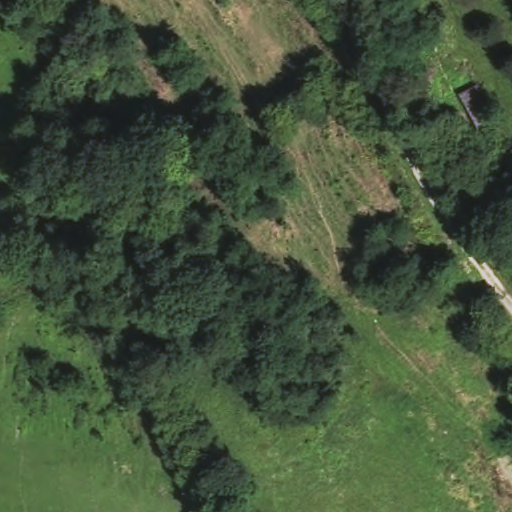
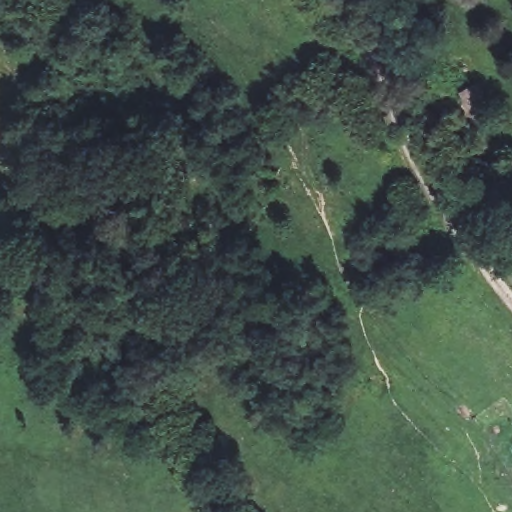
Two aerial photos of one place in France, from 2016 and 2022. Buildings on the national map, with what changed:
unchanged [(471,83),(491,117),(470,125),(451,94),(471,83)]

